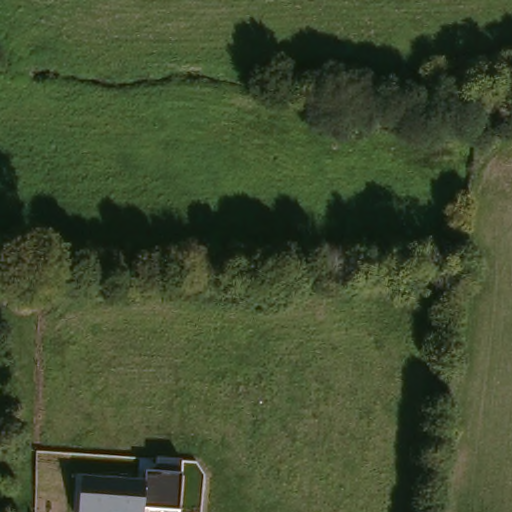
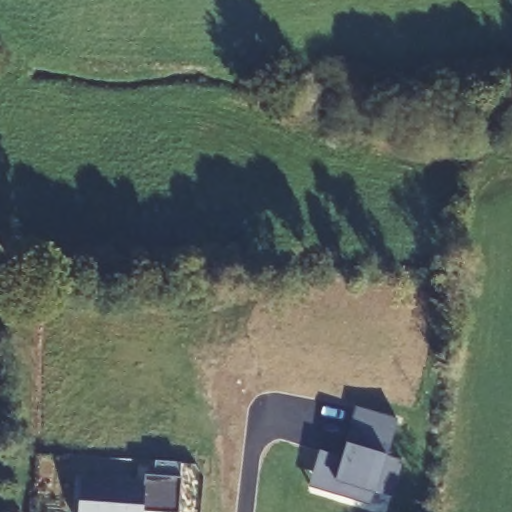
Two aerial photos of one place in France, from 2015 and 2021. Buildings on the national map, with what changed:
new [(399,420),(386,455),(388,455),(404,460),(392,497),(378,492),(377,495),(373,492),(371,504),(309,486),(320,450),(340,456),(357,407),(399,420)]
unchanged [(180,463),(180,478),(179,512),(155,512),(143,511),(142,512),(78,512),(81,481),(144,486),(144,475),(156,475),(156,462),(180,463)]

